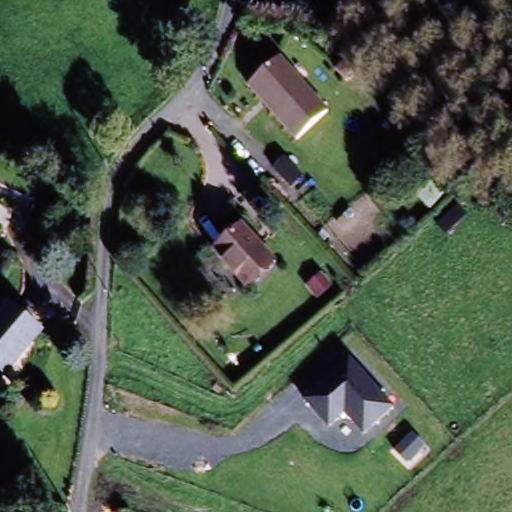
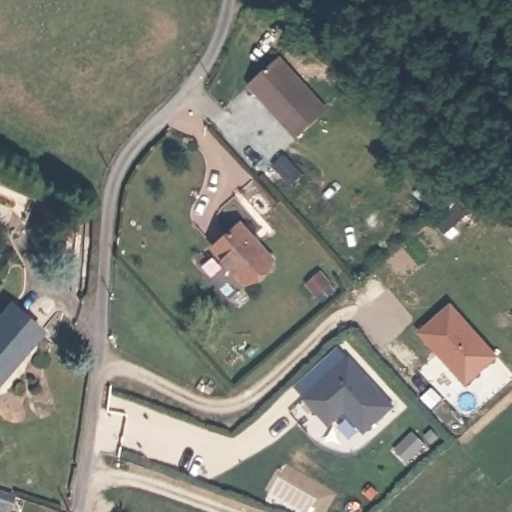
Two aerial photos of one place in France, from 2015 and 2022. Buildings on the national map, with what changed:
unchanged [(249,84),(279,55),(327,107),(297,136),(249,84)]
unchanged [(0,187),(0,169),(19,178),(14,193),(0,187)]
unchanged [(279,182),(297,202),(284,212),(267,192),(279,182)]
unchanged [(214,249),(243,221),(275,255),(246,283),(214,249)]
new [(499,357),(465,387),(418,333),(452,303),(499,357)]
unchanged [(37,326),(3,380),(0,378),(0,311),(4,304),(37,326)]
unchanged [(351,360),(393,408),(363,434),(348,414),(330,428),(307,397),(351,360)]

